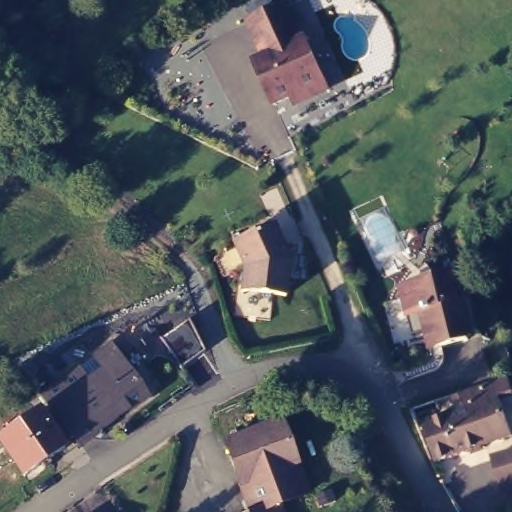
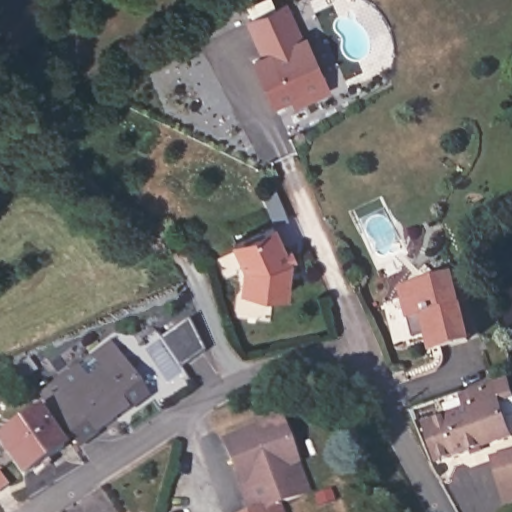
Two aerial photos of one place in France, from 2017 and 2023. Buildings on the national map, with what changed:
unchanged [(290,100),(269,109),(250,66),(260,62),(244,26),(280,10),(296,46),(300,44),(323,95),(293,108),(290,100)]
unchanged [(285,301),(242,297),(245,274),(233,250),(273,232),(285,257),(290,255),(293,263),(288,265),(289,267),(285,301)]
unchanged [(422,312),(410,316),(403,289),(452,276),(468,340),(441,347),(431,349),(422,312)]
unchanged [(80,445),(43,395),(102,352),(110,347),(146,396),(138,402),(80,445)]
unchanged [(436,465),(425,427),(466,413),(461,397),(494,385),(506,381),(512,398),(500,402),(512,440),(436,465)]
unchanged [(33,413),(58,449),(43,460),(46,465),(39,470),(35,465),(20,476),(0,448),(0,437),(33,413)]
unchanged [(255,512),(230,443),(285,422),(313,493),(285,504),(284,504),(263,512),(255,512)]
unchanged [(506,484),(505,485),(498,457),(512,454),(512,502),(511,502),(506,484)]
unchanged [(285,504),(287,512),(263,512),(284,504),(285,504)]

